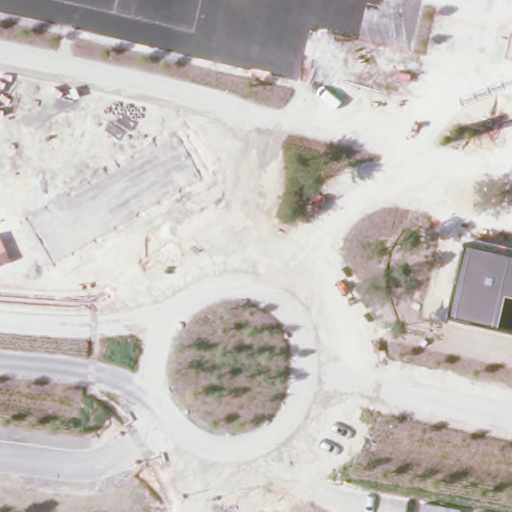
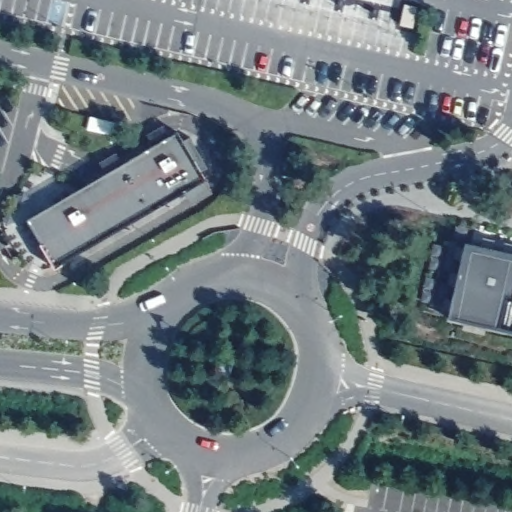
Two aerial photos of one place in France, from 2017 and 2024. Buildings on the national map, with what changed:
new [(108,171),(107,168),(118,160),(123,164),(158,142),(156,139),(163,135),(166,139),(178,131),(183,140),(189,136),(206,166),(201,170),(206,177),(56,265),(28,219),(108,171)]
unchanged [(449,316),(466,244),(512,254),(512,330),(449,316)]

